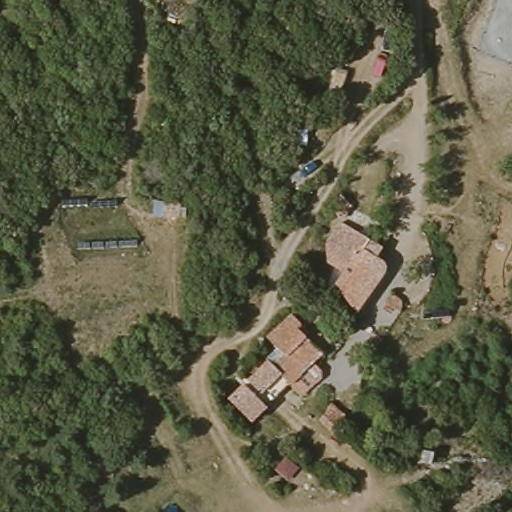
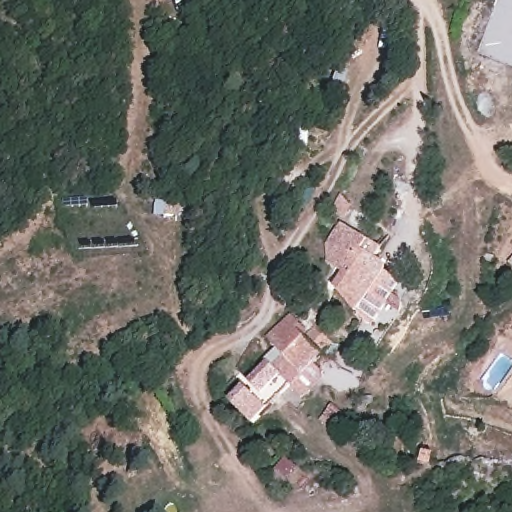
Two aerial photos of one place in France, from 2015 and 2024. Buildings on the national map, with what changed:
unchanged [(345,215),(388,242),(381,254),(392,262),(358,308),(331,292),(349,262),(336,254),(342,241),(333,237),(345,215)]
unchanged [(247,378),(281,347),(271,333),(296,308),(309,325),(305,330),(310,333),(321,324),(337,340),(323,352),(304,370),(310,377),(301,386),(296,381),(273,402),(255,421),(229,397),(247,378)]

